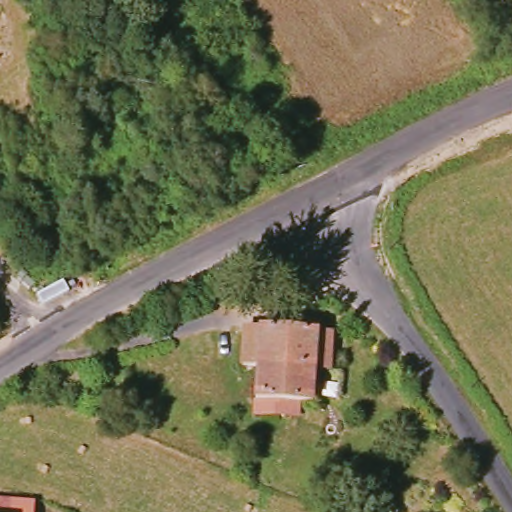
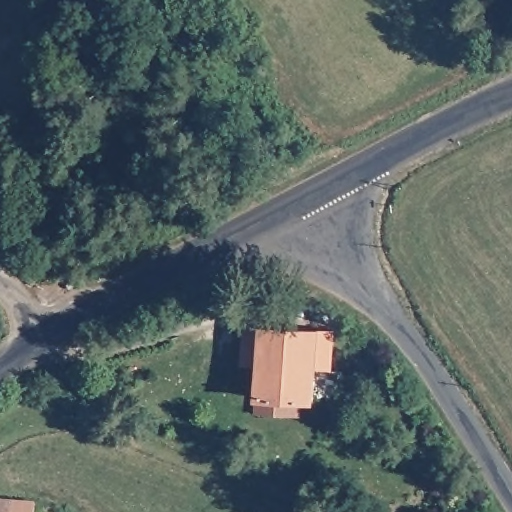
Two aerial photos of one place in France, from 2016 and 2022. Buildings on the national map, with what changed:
unchanged [(254,370),(240,368),(241,326),(326,331),(325,372),(313,372),(311,406),(252,402),(254,370)]
unchanged [(33,504),(33,512),(0,512),(0,501),(33,504)]

